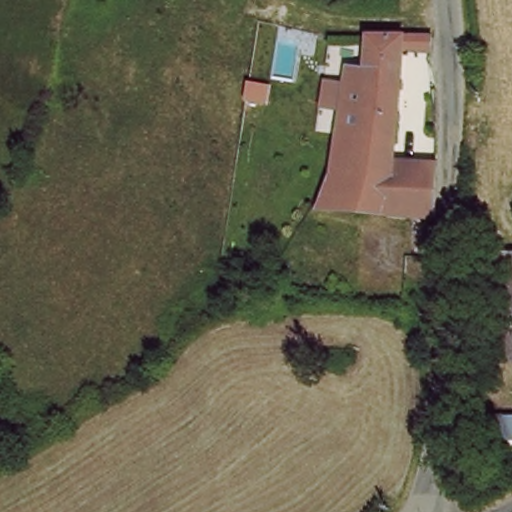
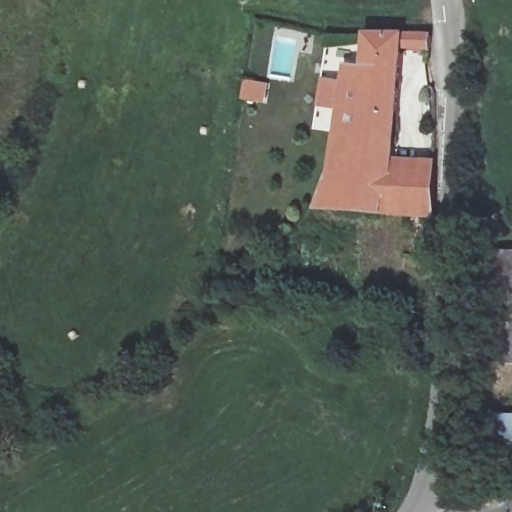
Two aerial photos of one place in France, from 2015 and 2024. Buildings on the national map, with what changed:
unchanged [(347,68),(365,72),(368,43),(431,32),(430,45),(402,41),(396,139),(339,141),(347,68)]
unchanged [(335,178),(339,141),(396,139),(396,155),(439,155),(441,205),(323,212),(335,178)]
unchanged [(491,460),(496,319),(497,230),(512,231),(512,460),(491,460)]

